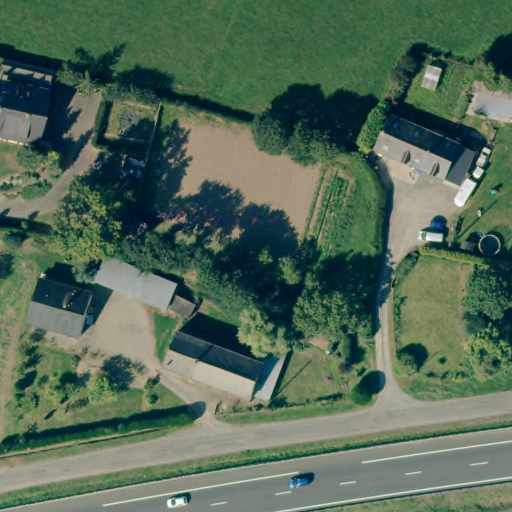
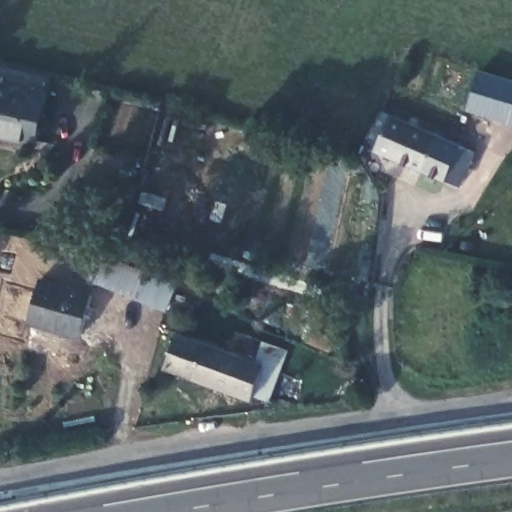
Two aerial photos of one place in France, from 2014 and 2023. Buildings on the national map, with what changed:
unchanged [(51,72),(38,141),(0,134),(0,73),(2,61),(51,72)]
new [(480,70),(512,80),(512,124),(467,110),(480,70)]
unchanged [(436,176),(368,146),(382,112),(465,150),(459,163),(450,183),(436,176)]
unchanged [(174,283),(171,291),(166,305),(114,283),(97,278),(107,255),(119,260),(174,283)]
unchanged [(39,283),(90,298),(79,336),(29,322),(39,283)]
unchanged [(272,362),(261,396),(175,368),(186,335),(272,362)]

